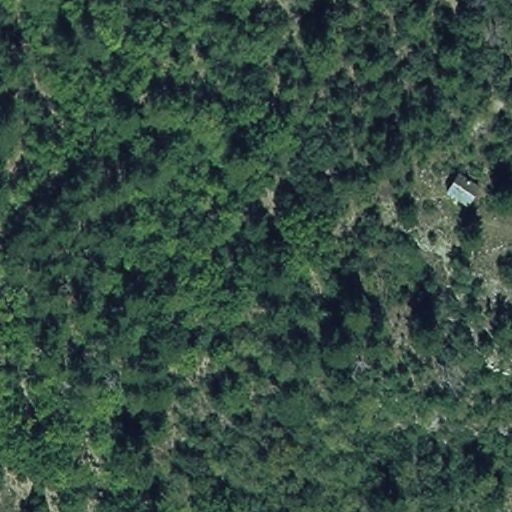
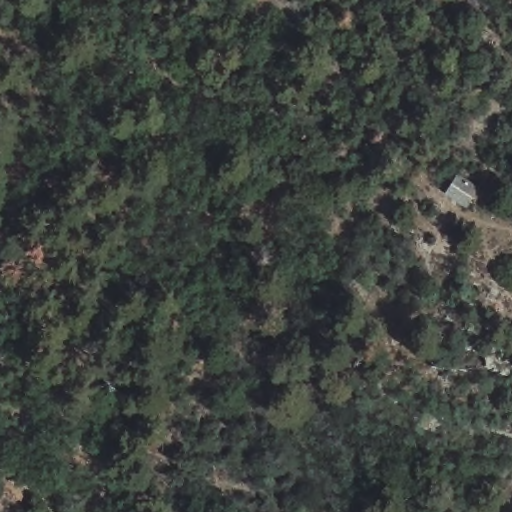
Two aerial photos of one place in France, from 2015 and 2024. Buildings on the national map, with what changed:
unchanged [(476,187),(465,206),(447,195),(458,177),(476,187)]

